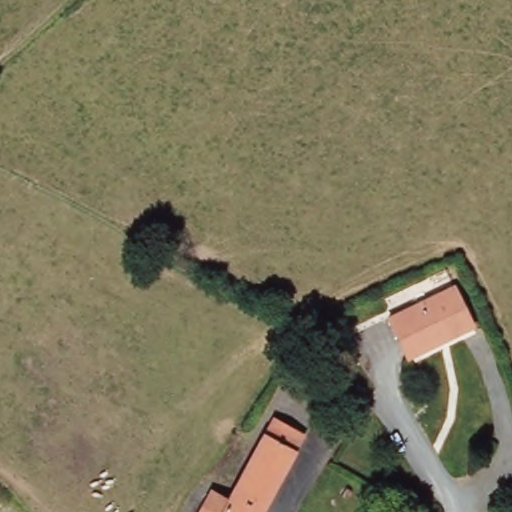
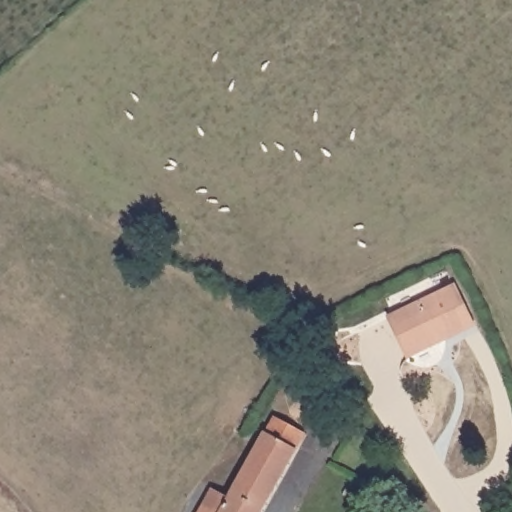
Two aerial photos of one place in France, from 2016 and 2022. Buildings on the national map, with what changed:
unchanged [(454,283),(474,329),(405,360),(388,314),(454,283)]
unchanged [(196,512),(210,486),(229,496),(265,431),(294,445),(258,512),(196,512)]

